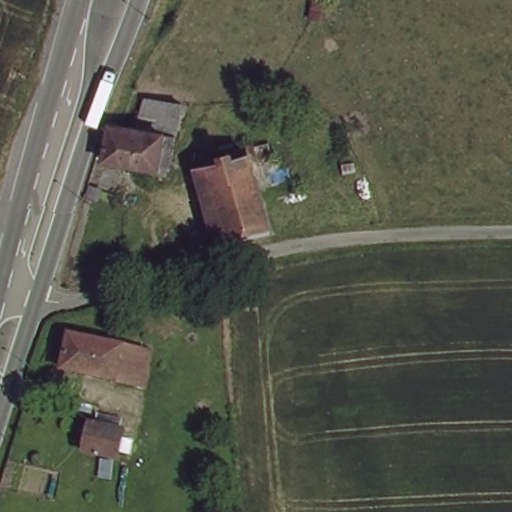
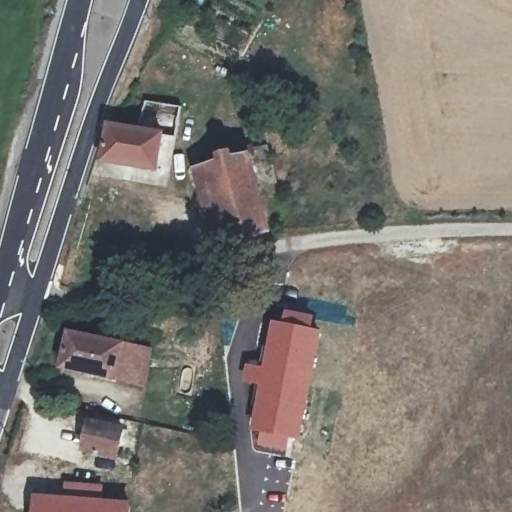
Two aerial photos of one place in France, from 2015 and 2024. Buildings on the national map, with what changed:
unchanged [(147,98),(186,106),(174,136),(139,129),(147,98)]
unchanged [(104,122),(118,124),(139,129),(174,136),(168,171),(97,157),(104,122)]
unchanged [(204,167),(247,155),(266,222),(224,235),(204,167)]
new [(246,363),(262,365),(272,320),(283,322),(286,310),(316,315),(313,329),(324,331),(301,441),(291,439),(287,452),(256,445),(261,432),(251,430),(258,385),(241,382),(246,363)]
unchanged [(131,387),(46,365),(57,325),(141,347),(131,387)]
unchanged [(114,461),(79,452),(87,419),(123,429),(114,461)]
new [(36,498),(65,500),(66,486),(101,488),(100,504),(129,507),(129,512),(35,512),(36,498)]

